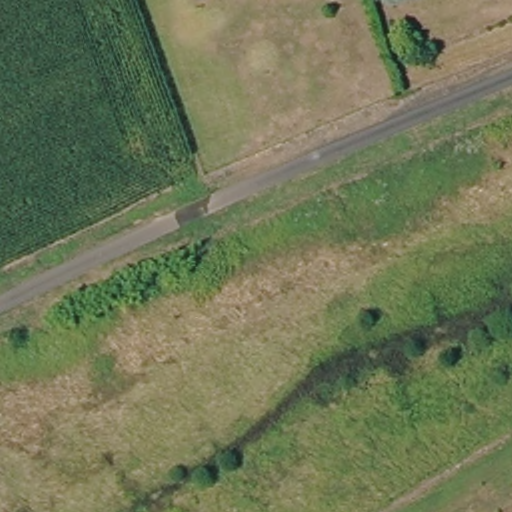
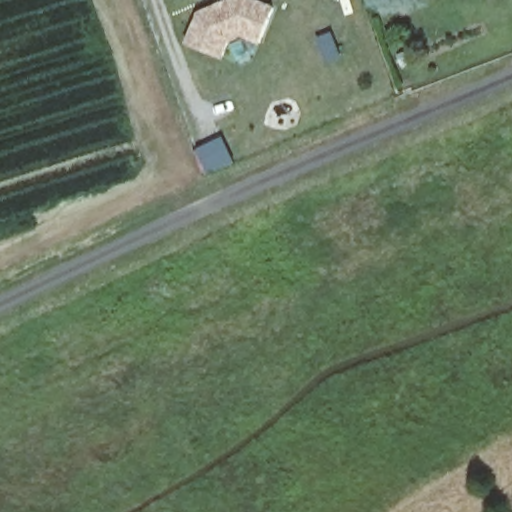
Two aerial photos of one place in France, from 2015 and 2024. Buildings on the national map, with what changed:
new [(198,12),(227,0),(258,0),(275,7),(261,45),(242,37),(228,45),(223,60),(186,45),(198,12)]

